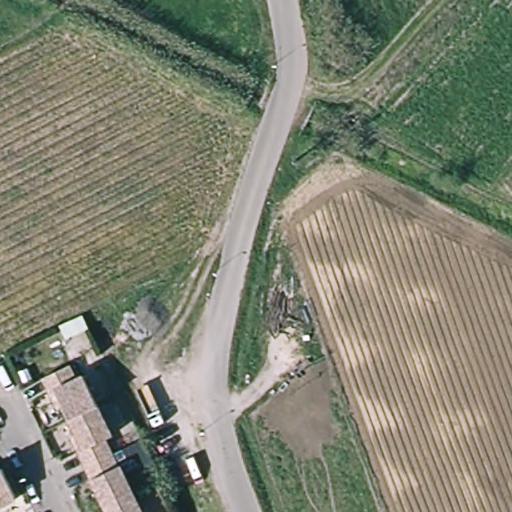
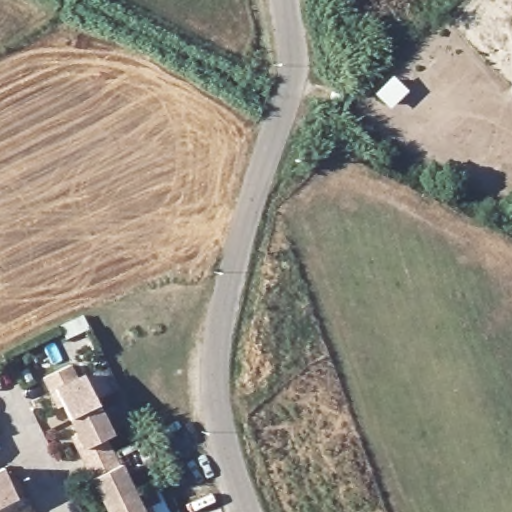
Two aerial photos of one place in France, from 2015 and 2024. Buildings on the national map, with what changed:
unchanged [(76,379),(86,375),(114,433),(103,437),(110,453),(116,451),(144,512),(105,512),(76,451),(68,438),(78,433),(66,407),(55,409),(48,393),(42,378),(70,365),(76,379)]
unchanged [(0,510),(0,473),(6,470),(11,481),(20,500),(10,505),(0,510)]

